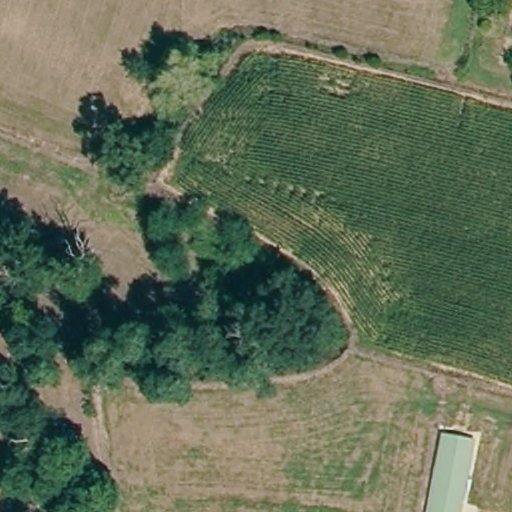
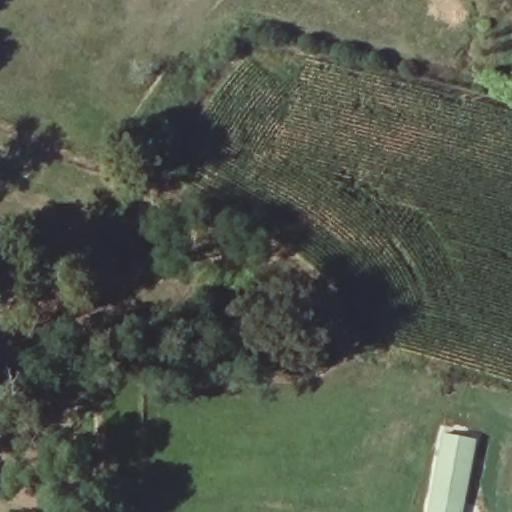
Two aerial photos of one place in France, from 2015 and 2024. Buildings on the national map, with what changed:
unchanged [(461,512),(423,512),(436,433),(475,439),(461,512)]

